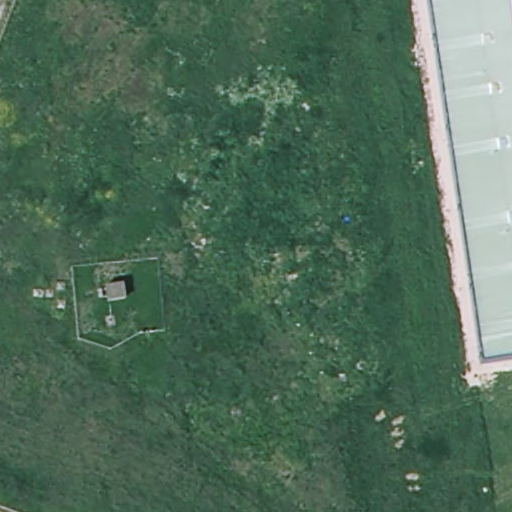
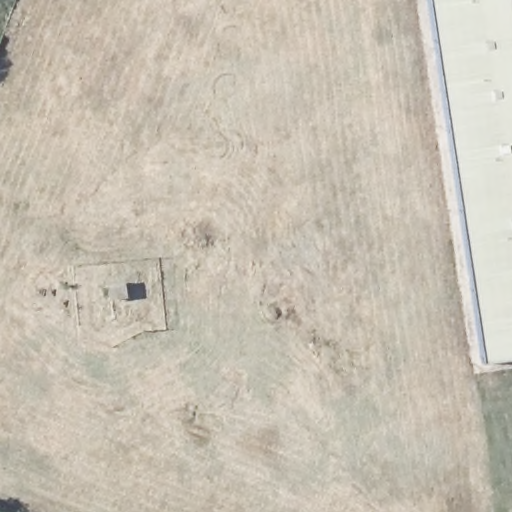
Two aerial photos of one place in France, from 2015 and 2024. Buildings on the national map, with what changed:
unchanged [(433,0),(512,0),(512,362),(486,366),(433,0)]

